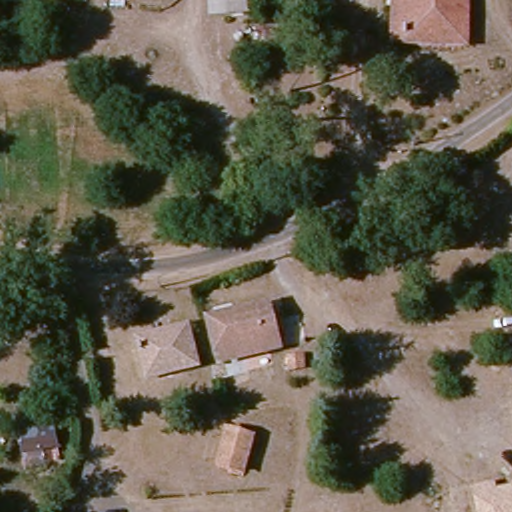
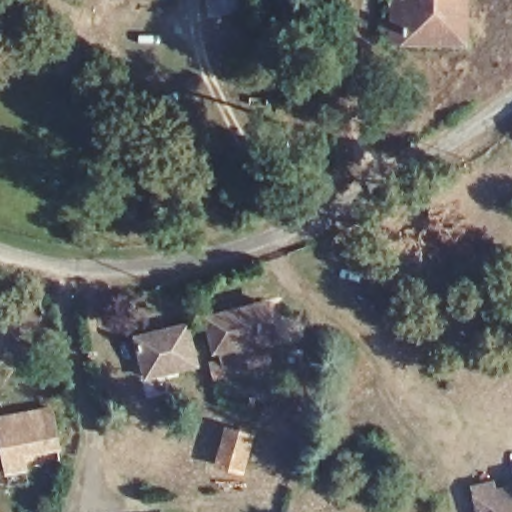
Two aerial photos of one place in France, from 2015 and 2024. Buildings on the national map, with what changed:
unchanged [(269,0),(313,0),(315,13),(270,16),(269,0)]
unchanged [(408,5),(408,0),(466,0),(468,44),(409,45),(386,45),(384,6),(408,5)]
unchanged [(227,365),(224,354),(219,355),(210,324),(268,305),(281,347),(227,365)]
unchanged [(186,325),(193,363),(140,381),(131,342),(186,325)]
new [(61,448),(29,463),(29,471),(6,474),(0,442),(0,417),(55,406),(61,448)]
demolished [(23,455),(18,432),(53,423),(60,445),(23,455)]
unchanged [(223,435),(245,439),(238,475),(217,470),(223,435)]
unchanged [(471,489),(495,483),(497,491),(512,487),(512,512),(477,512),(471,489)]

